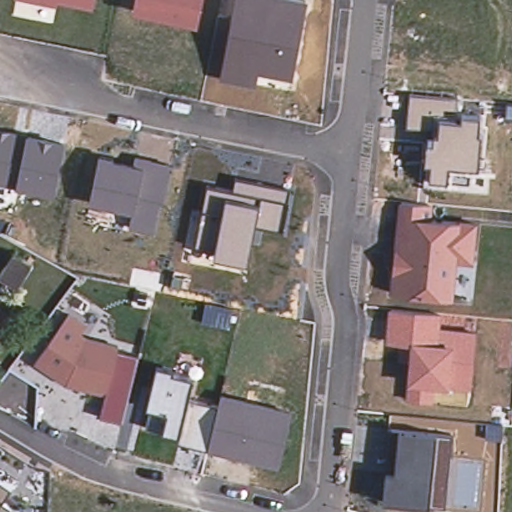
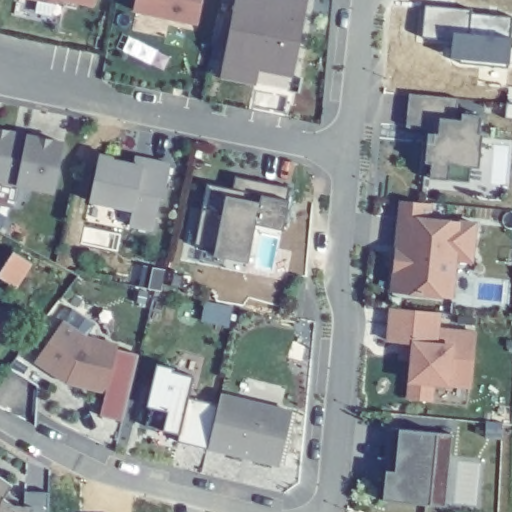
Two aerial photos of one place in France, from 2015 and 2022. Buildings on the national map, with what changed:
unchanged [(58,1),(58,5),(36,0),(95,0),(94,7),(58,1)]
unchanged [(137,0),(204,0),(198,27),(134,12),(137,0)]
unchanged [(226,49),(214,47),(220,16),(233,18),(237,0),(308,0),(294,77),(259,71),(256,85),(221,77),(223,61),(226,49)]
new [(471,9),(471,14),(510,17),(509,40),(511,39),(510,64),(451,59),(452,39),(423,38),(425,6),(471,9)]
unchanged [(429,135),(439,136),(439,129),(408,126),(411,96),(458,100),(457,115),(464,116),(478,117),(479,117),(479,134),(482,135),(479,168),(470,167),(469,184),(446,180),(431,178),(432,162),(426,162),(429,135)]
new [(512,105),(512,121),(506,121),(505,105),(512,105)]
unchanged [(65,142),(55,195),(16,187),(0,183),(0,128),(28,134),(65,142)]
unchanged [(100,156),(133,162),(135,157),(173,165),(157,234),(129,229),(133,213),(90,204),(100,156)]
unchanged [(208,186),(233,191),(236,179),(289,189),(282,230),(256,224),(248,262),(215,255),(216,250),(196,246),(208,186)]
unchanged [(399,202),(433,205),(432,220),(478,222),(475,263),(458,263),(455,300),(397,297),(391,292),(399,202)]
unchanged [(14,287),(0,278),(0,272),(13,253),(29,263),(14,287)]
new [(231,308),(228,326),(201,322),(204,302),(231,308)]
unchanged [(0,333),(0,307),(13,317),(0,333)]
unchanged [(409,385),(412,346),(387,343),(389,310),(441,314),(439,328),(477,332),(472,391),(451,388),(434,387),(433,402),(407,399),(409,385)]
unchanged [(69,312),(88,323),(83,333),(88,337),(119,344),(118,351),(139,356),(124,421),(101,416),(105,393),(66,384),(35,362),(69,312)]
unchanged [(151,407),(148,407),(158,365),(174,368),(173,372),(193,377),(189,397),(218,404),(221,393),(294,410),(280,467),(207,451),(208,448),(178,441),(180,435),(164,430),(146,427),(151,407)]
unchanged [(386,471),(391,427),(399,428),(436,432),(453,435),(446,507),(431,506),(383,501),(386,471)]
unchanged [(3,500),(12,507),(33,507),(33,512),(0,512),(0,480),(11,487),(3,500)]

